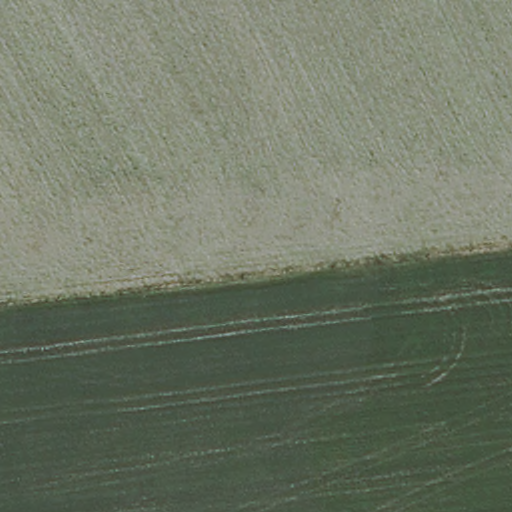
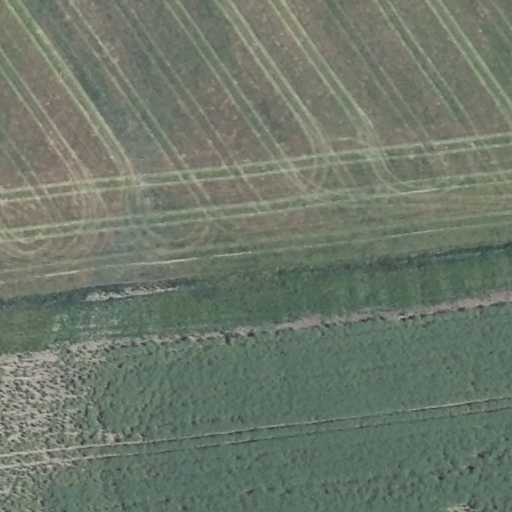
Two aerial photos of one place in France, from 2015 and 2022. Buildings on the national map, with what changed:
[]

